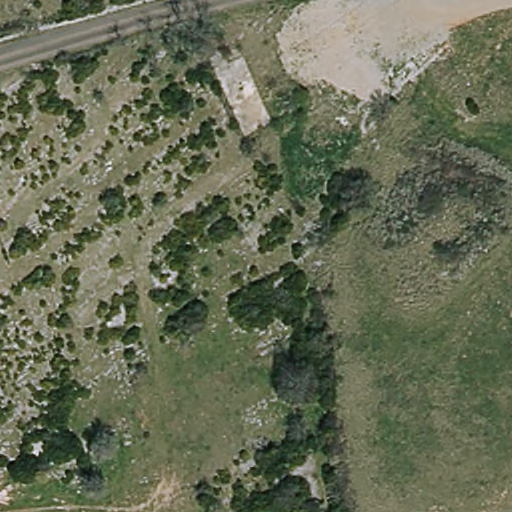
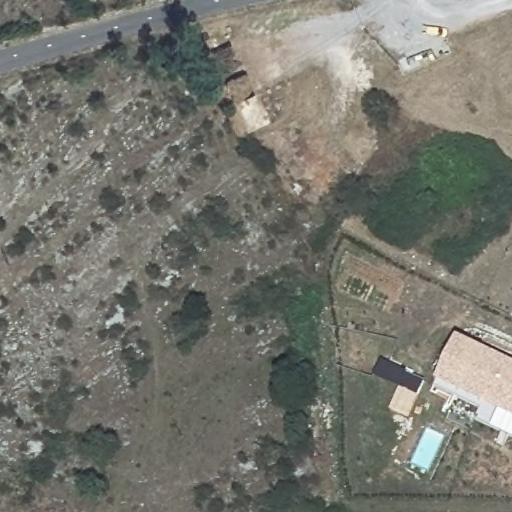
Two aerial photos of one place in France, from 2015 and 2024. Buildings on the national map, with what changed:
new [(461,338),(512,363),(512,436),(477,420),(482,409),(435,387),(461,338)]

